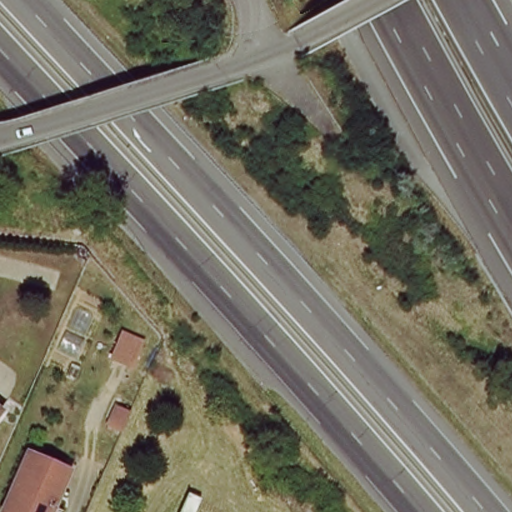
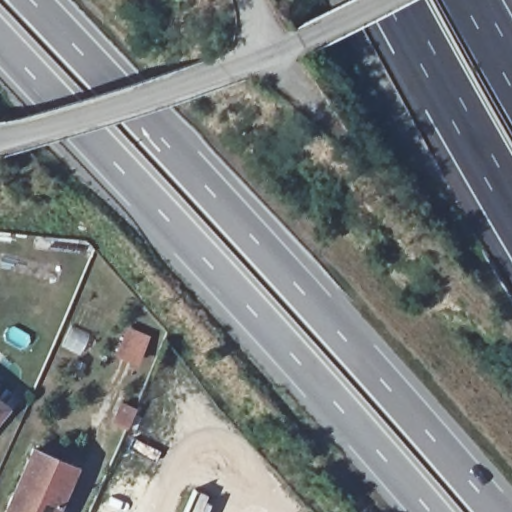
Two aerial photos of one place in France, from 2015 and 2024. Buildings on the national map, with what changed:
unchanged [(0,407),(0,401),(3,403),(0,407)]
unchanged [(72,461),(51,512),(19,512),(5,506),(30,445),(72,461)]
unchanged [(197,482),(211,489),(200,512),(184,512),(197,482)]

